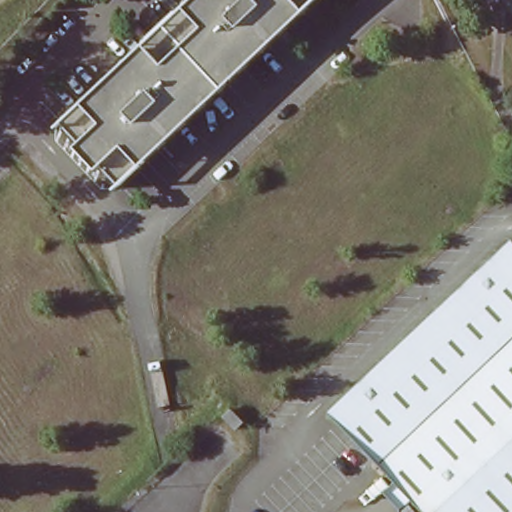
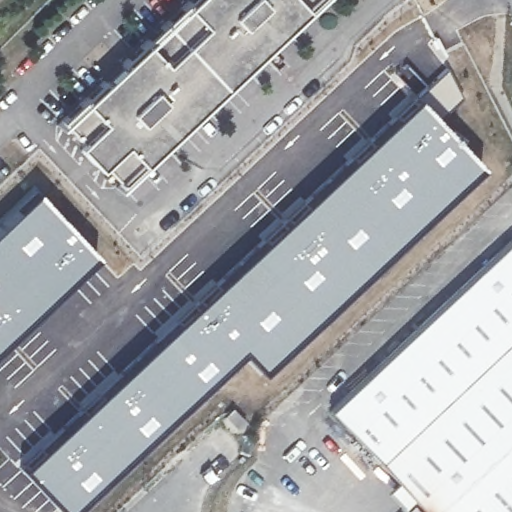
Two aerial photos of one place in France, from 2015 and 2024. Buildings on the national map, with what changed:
unchanged [(101,163),(94,162),(81,149),(81,141),(61,120),(103,80),(111,80),(123,69),(123,62),(189,0),(318,0),(121,184),(101,163)]
new [(445,68),(463,97),(440,121),(414,96),(445,68)]
new [(288,217),(382,129),(414,96),(440,121),(478,163),(263,365),(249,352),(245,354),(241,350),(180,409),(68,512),(64,512),(20,465),(288,217)]
new [(35,189),(94,253),(0,342),(0,222),(35,189)]
unchanged [(401,508),(386,491),(396,481),(330,410),(512,238),(512,512),(401,512),(401,508)]
unchanged [(225,415),(232,408),(245,421),(237,429),(225,415)]

